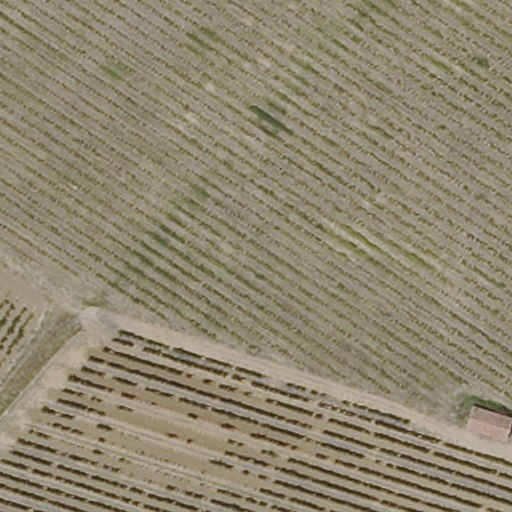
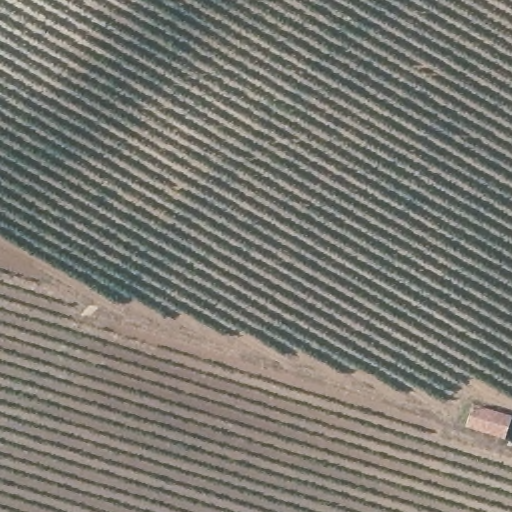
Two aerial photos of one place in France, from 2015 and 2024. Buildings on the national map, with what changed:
unchanged [(476,404),(494,409),(512,415),(512,418),(507,436),(487,430),(470,425),(476,404)]

